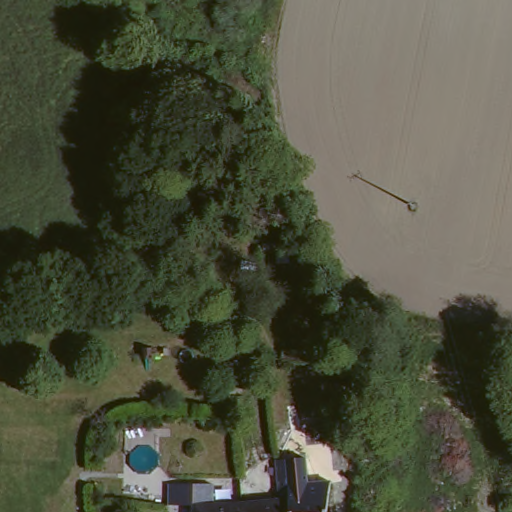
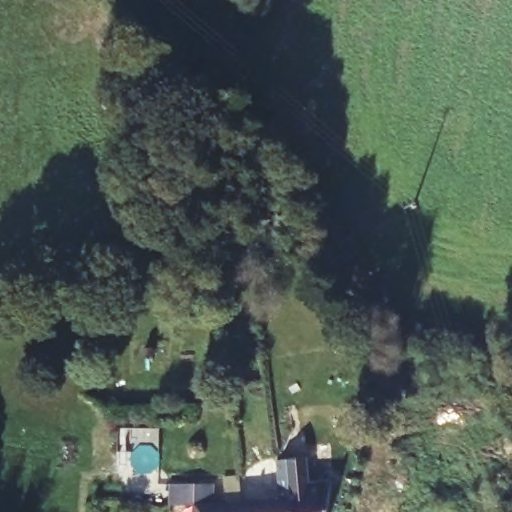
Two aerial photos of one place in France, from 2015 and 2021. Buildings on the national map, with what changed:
unchanged [(193,511),(293,505),(293,489),(328,484),(326,512),(193,512),(193,511)]

